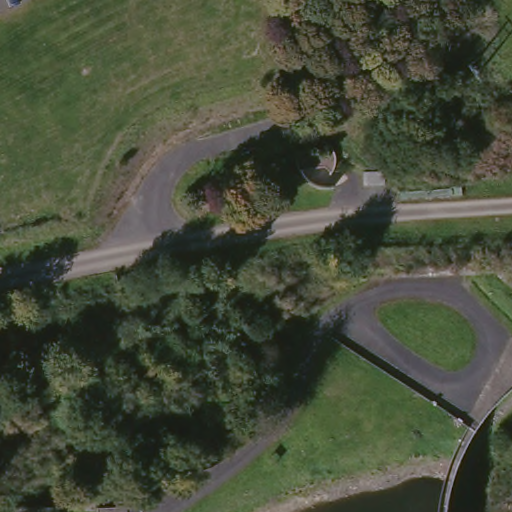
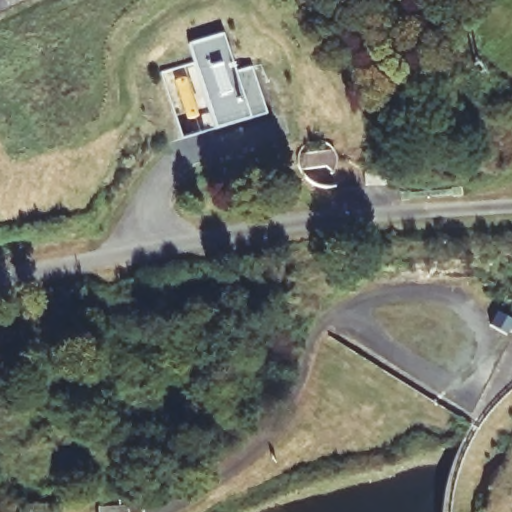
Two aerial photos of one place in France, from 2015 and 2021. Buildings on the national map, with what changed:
new [(189,44),(223,34),(234,70),(252,65),(266,114),(248,119),(214,129),(189,44)]
unchanged [(301,179),(300,160),(304,150),(310,142),(319,138),(339,145),(343,152),(344,158),(344,165),(338,176),(325,171),(301,179)]
unchanged [(0,512),(0,490),(13,490),(13,500),(52,500),(53,512),(0,512)]

